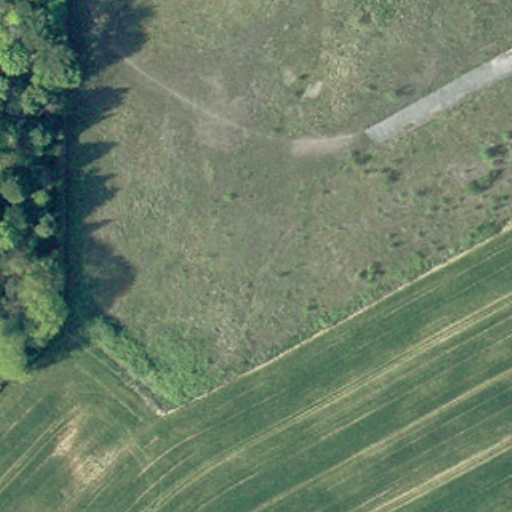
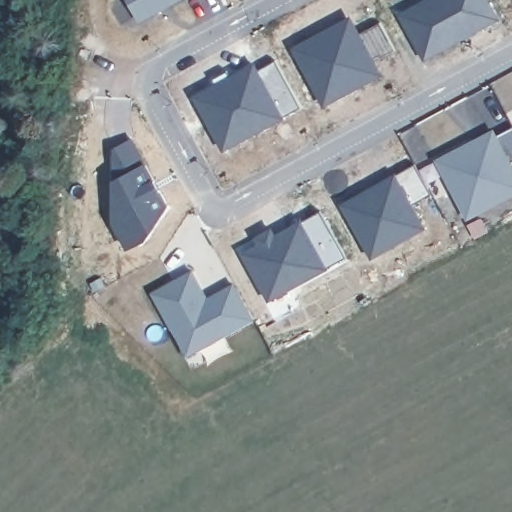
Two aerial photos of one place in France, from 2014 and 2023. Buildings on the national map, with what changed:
new [(139,21),(128,0),(179,0),(139,21)]
new [(422,56),(400,16),(424,3),(426,7),(435,2),(434,0),(486,0),(498,20),(457,42),(455,38),(447,43),(422,56)]
new [(213,80),(228,72),(231,79),(254,66),(257,72),(276,62),(301,109),(223,151),(194,98),(216,87),(213,80)]
new [(434,159),(494,128),(498,136),(512,128),(512,161),(512,197),(467,221),(434,159)]
new [(114,182),(115,150),(131,141),(144,166),(153,183),(158,192),(166,207),(144,241),(138,244),(128,249),(114,222),(114,182)]
new [(414,205),(428,228),(374,258),(343,204),(417,163),(434,194),(414,205)]
new [(235,282),(256,319),(188,358),(151,293),(193,269),(209,297),(235,282)]

